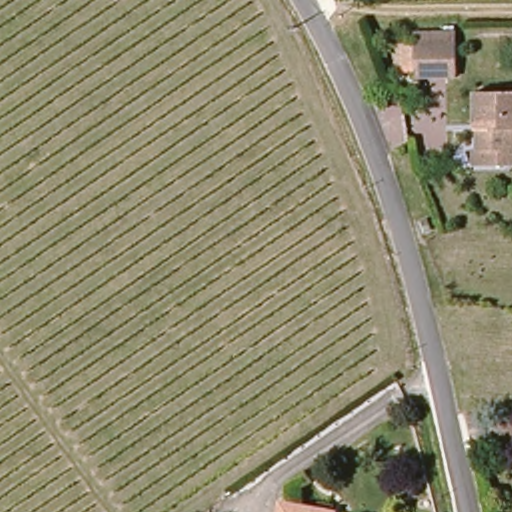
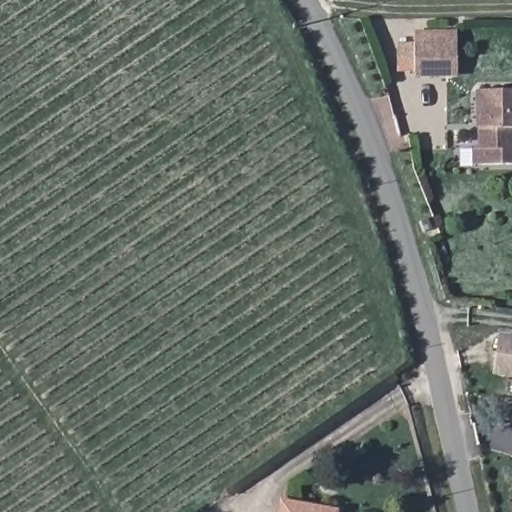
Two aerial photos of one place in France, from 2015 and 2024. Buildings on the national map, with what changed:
unchanged [(459,67),(417,68),(417,52),(416,38),(459,37),(459,53),(459,67)]
unchanged [(481,113),(480,88),(512,87),(512,113),(481,113)]
unchanged [(510,164),(477,165),(477,148),(482,148),(481,113),(512,113),(512,164),(510,164)]
new [(494,374),(499,333),(512,335),(512,377),(494,374)]
unchanged [(313,512),(285,512),(286,506),(313,512)]

